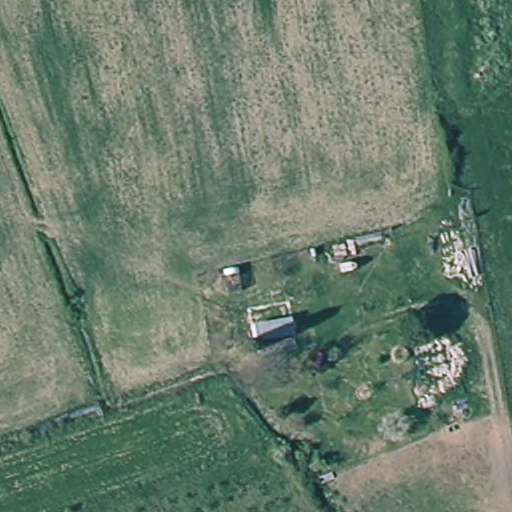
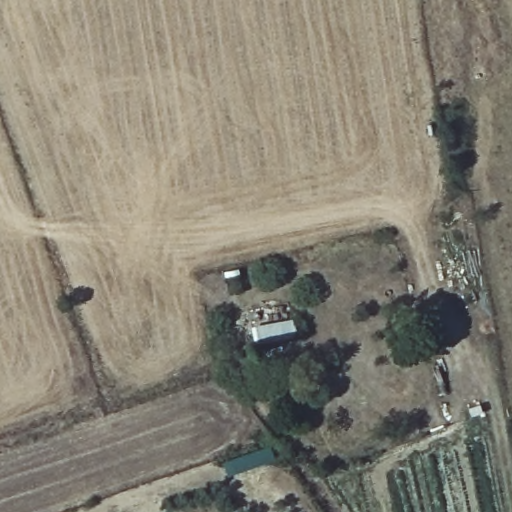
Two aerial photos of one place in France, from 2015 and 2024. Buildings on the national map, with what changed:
unchanged [(282,318),(285,352),(253,353),(247,323),(282,318)]

